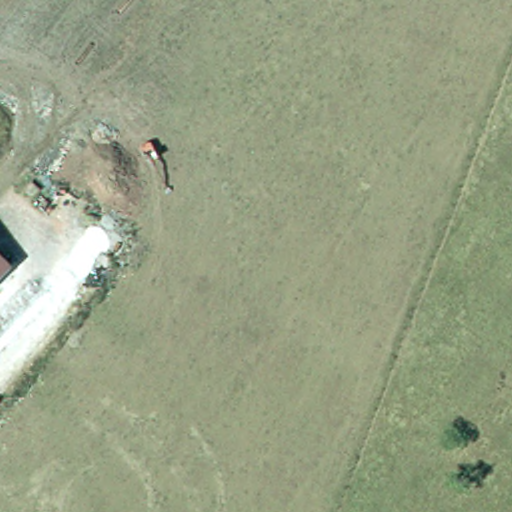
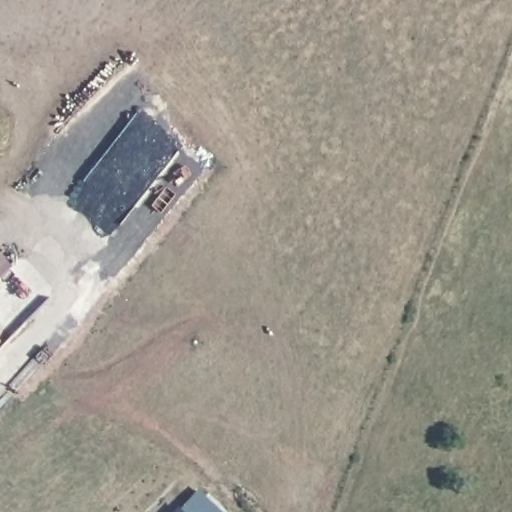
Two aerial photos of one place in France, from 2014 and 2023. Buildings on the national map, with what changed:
unchanged [(12,262),(0,274),(0,251),(12,262)]
new [(226,512),(177,512),(200,488),(226,512)]
new [(186,512),(176,512),(180,507),(186,512)]

